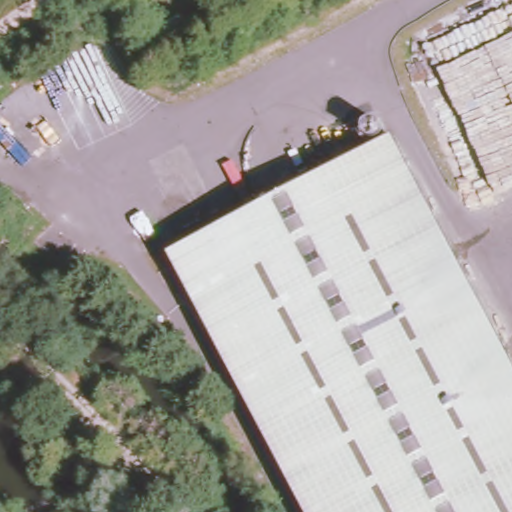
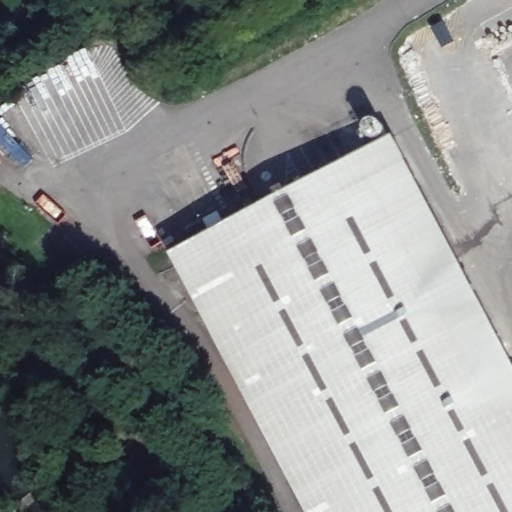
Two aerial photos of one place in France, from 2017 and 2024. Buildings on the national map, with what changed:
unchanged [(392,136),(512,363),(512,512),(302,512),(167,258),(392,136)]

